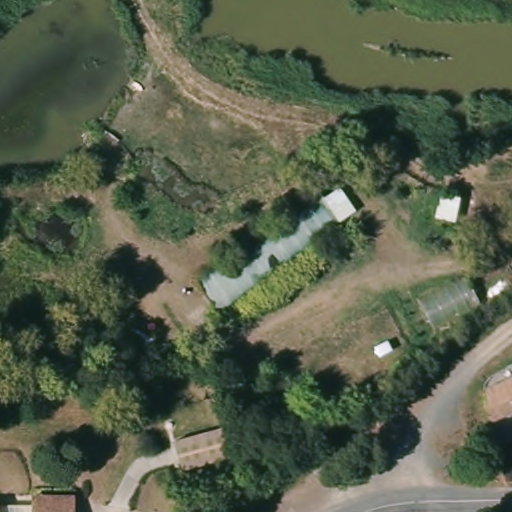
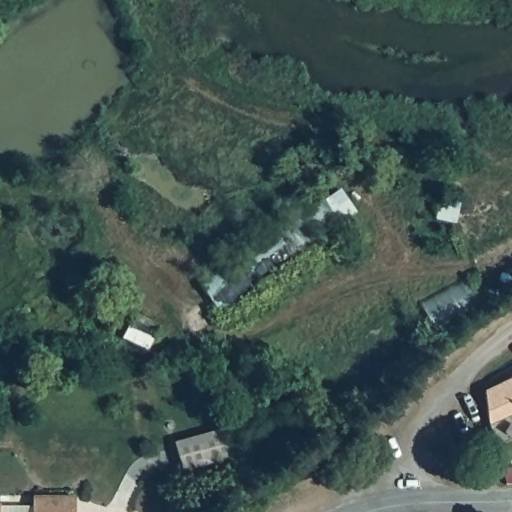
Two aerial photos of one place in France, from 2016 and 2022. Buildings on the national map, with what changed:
unchanged [(342,231),(218,317),(196,283),(320,198),(342,231)]
unchanged [(481,392),(512,374),(512,416),(505,420),(503,415),(490,424),(481,392)]
unchanged [(31,510),(31,495),(77,495),(76,510),(76,512),(31,512),(31,510)]

